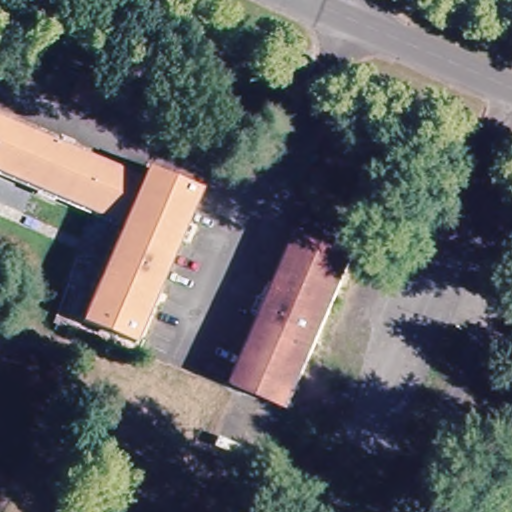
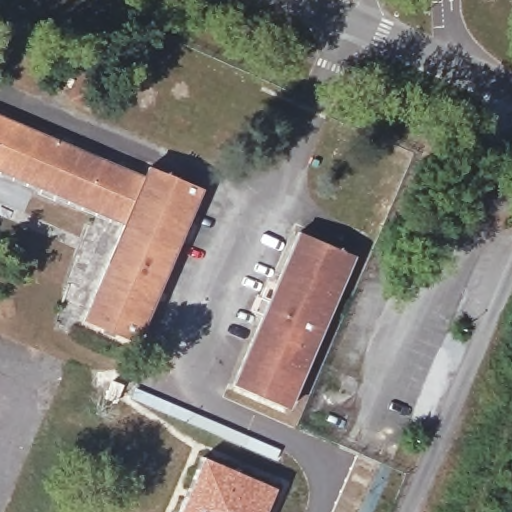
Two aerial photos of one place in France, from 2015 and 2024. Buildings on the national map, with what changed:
unchanged [(66,97),(77,65),(109,82),(98,109),(66,97)]
unchanged [(135,342),(77,316),(116,221),(0,171),(0,111),(135,170),(143,165),(201,187),(135,342)]
unchanged [(284,412),(226,384),(292,232),(355,254),(284,412)]
new [(203,457),(276,488),(266,512),(179,512),(203,457)]

